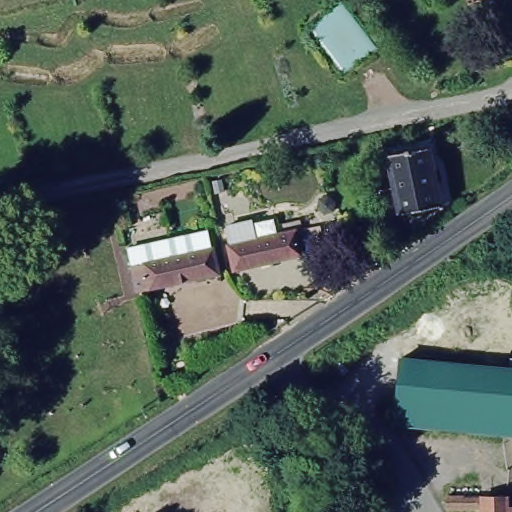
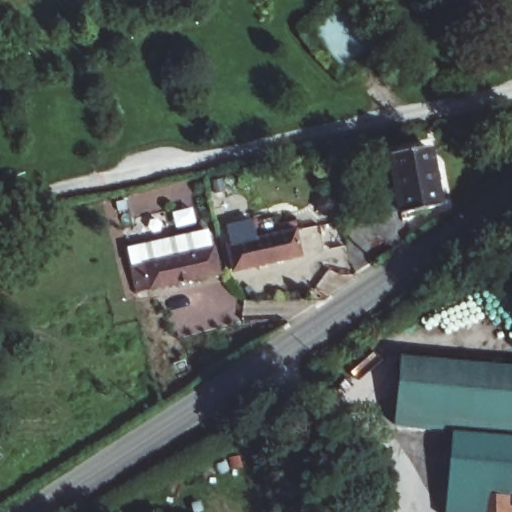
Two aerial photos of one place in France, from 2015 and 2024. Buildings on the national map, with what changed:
unchanged [(469,0),(472,0),(469,1),(469,0)]
unchanged [(428,140),(442,201),(405,209),(392,147),(428,140)]
unchanged [(405,209),(388,213),(373,151),(392,147),(405,209)]
unchanged [(228,244),(224,227),(251,221),(255,238),(295,229),(301,259),(231,275),(225,245),(228,244)]
unchanged [(210,243),(216,273),(136,289),(130,260),(210,243)]
unchanged [(512,436),(389,421),(397,351),(512,365),(512,436)]
new [(488,493),(484,512),(444,512),(452,428),(512,436),(512,494),(508,494),(488,493)]
demolished [(448,499),(503,501),(503,512),(447,512),(448,499)]

